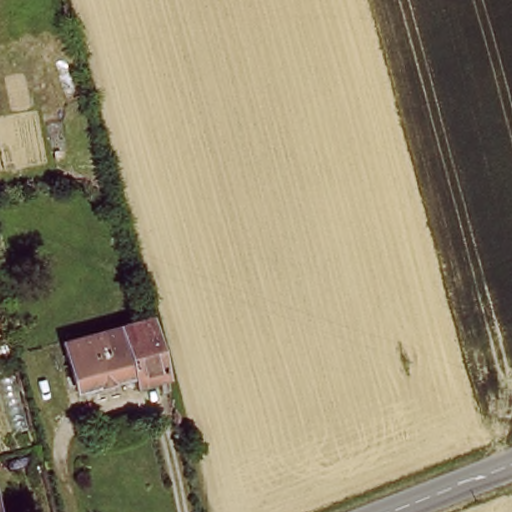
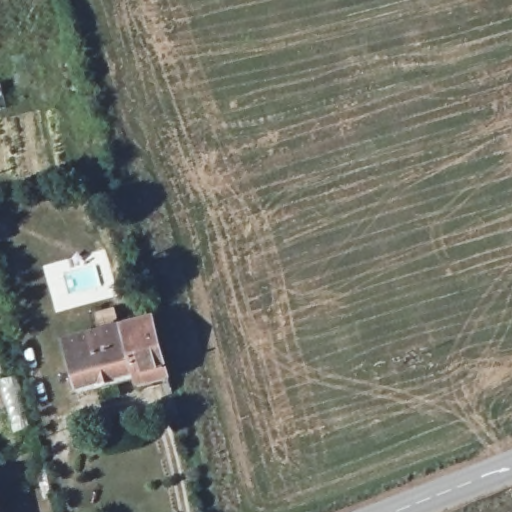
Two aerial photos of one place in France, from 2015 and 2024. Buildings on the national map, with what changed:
unchanged [(158,377),(126,384),(124,375),(93,382),(67,388),(55,340),(142,317),(158,377)]

